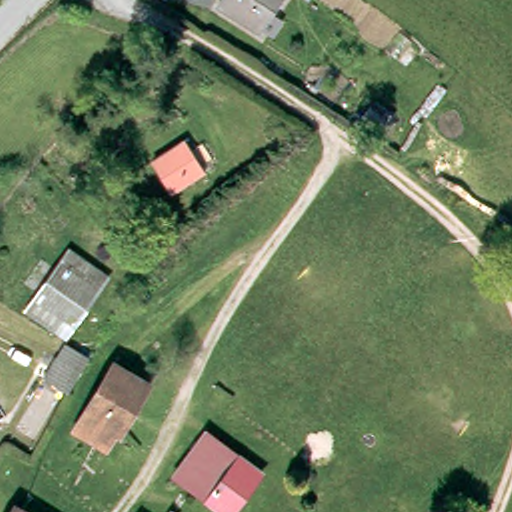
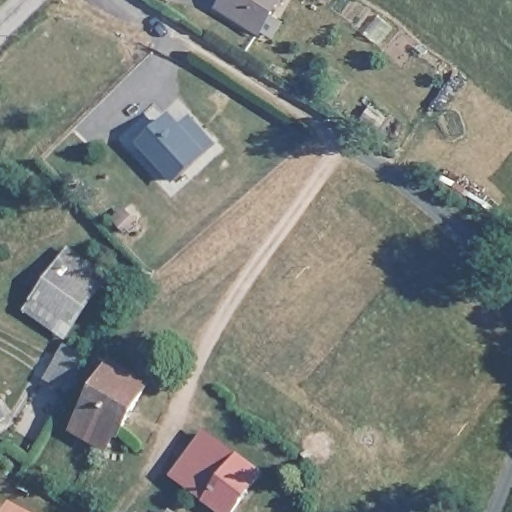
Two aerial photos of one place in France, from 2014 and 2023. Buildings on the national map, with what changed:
unchanged [(255,29),(218,4),(220,0),(274,0),(255,29)]
new [(194,115),(221,144),(176,186),(139,144),(176,112),(184,123),(194,115)]
demolished [(204,173),(173,195),(151,163),(183,142),(204,173)]
unchanged [(98,194),(89,202),(78,189),(86,182),(98,194)]
unchanged [(60,321),(55,329),(29,311),(64,255),(101,280),(70,327),(60,321)]
unchanged [(56,362),(63,351),(70,336),(94,350),(86,364),(78,378),(73,387),(49,374),(56,362)]
unchanged [(125,427),(119,424),(109,443),(83,429),(118,360),(153,379),(125,427)]
unchanged [(231,512),(225,512),(176,473),(211,432),(262,474),(231,512)]
unchanged [(15,512),(15,511),(17,512),(15,512)]

